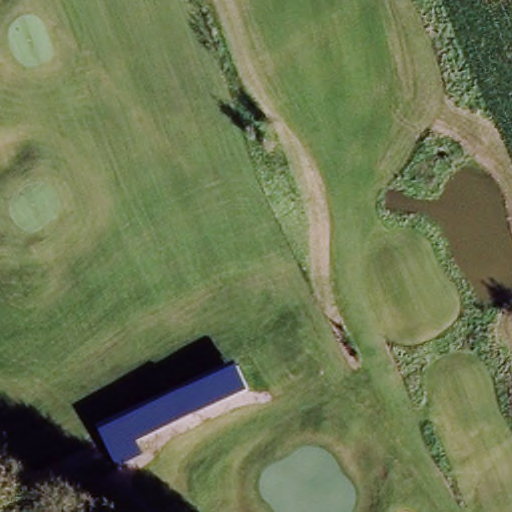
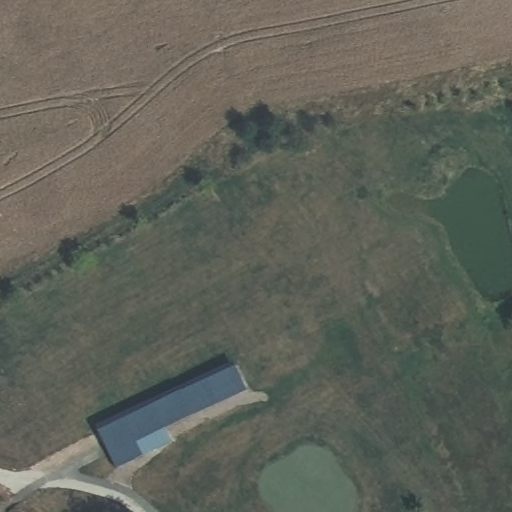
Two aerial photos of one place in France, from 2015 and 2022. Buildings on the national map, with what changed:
unchanged [(245,390),(136,442),(142,455),(116,466),(98,426),(233,362),(245,390)]

